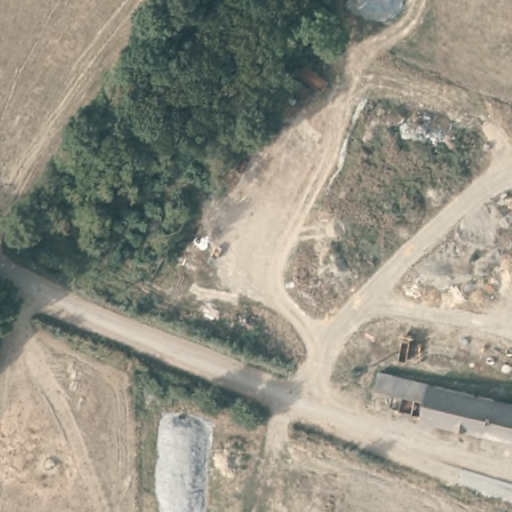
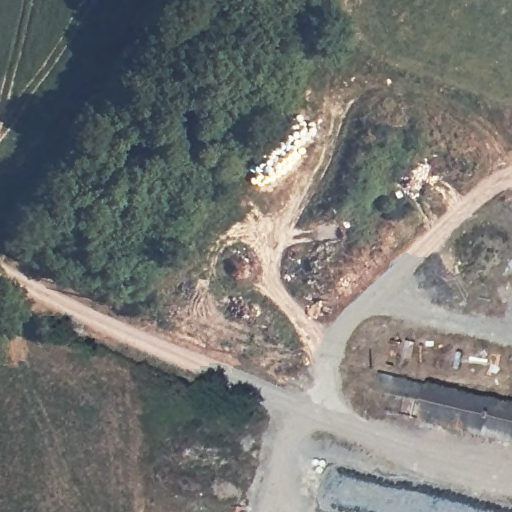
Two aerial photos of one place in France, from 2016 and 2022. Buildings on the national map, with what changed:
unchanged [(416,437),(419,418),(371,407),(374,388),(461,407),(465,389),(512,401),(512,458),(416,437)]

